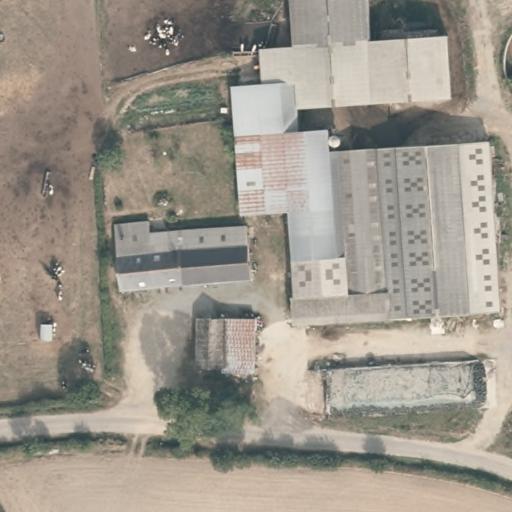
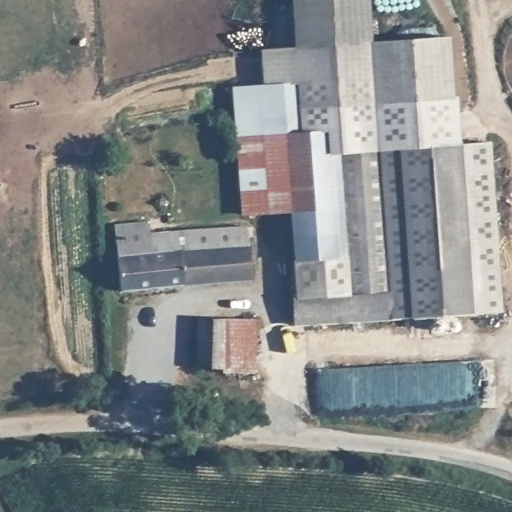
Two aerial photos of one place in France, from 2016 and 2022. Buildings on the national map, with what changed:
unchanged [(265,86),(263,50),(296,47),(293,0),(368,0),(370,42),(421,39),(447,38),(451,98),(435,99),(300,110),(302,134),(329,133),(330,160),(341,152),(445,144),(457,143),(481,142),(490,141),(493,199),(501,311),(485,312),(293,325),(292,297),(296,297),(291,210),(242,213),(233,88),(265,86)]
new [(457,143),(445,144),(341,152),(330,160),(329,133),(302,134),(300,110),(435,99),(451,98),(457,98),(461,143),(457,143)]
unchanged [(149,220),(153,231),(246,228),(251,279),(123,291),(116,225),(149,220)]
unchanged [(199,319),(252,318),(254,373),(225,375),(223,368),(198,367),(199,319)]

